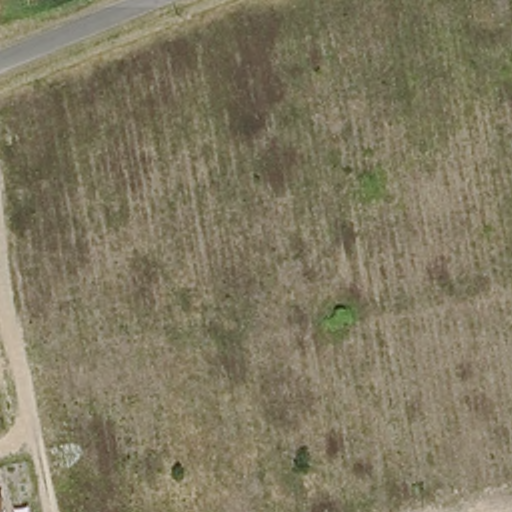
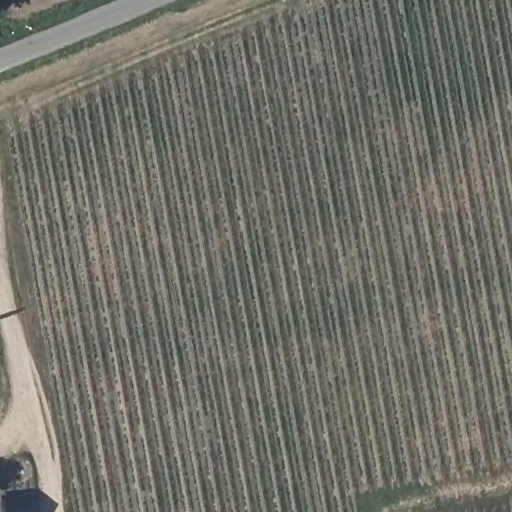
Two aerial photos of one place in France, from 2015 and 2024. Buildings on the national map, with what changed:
unchanged [(6,502),(7,512),(0,512),(0,503),(6,502)]

